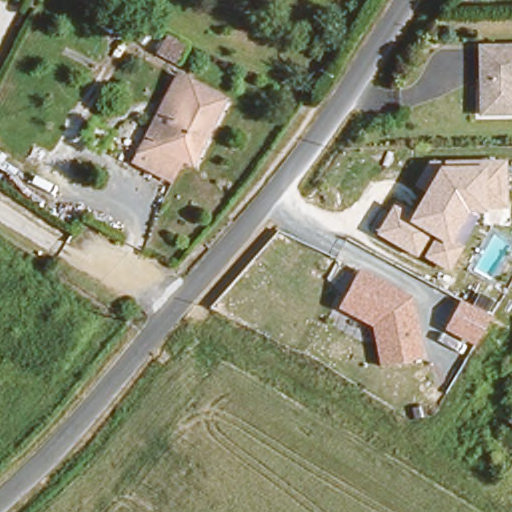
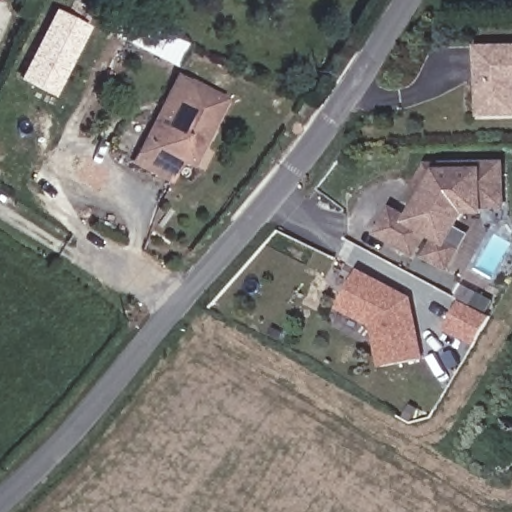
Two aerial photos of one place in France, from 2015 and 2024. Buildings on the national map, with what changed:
new [(21,79),(55,9),(87,26),(52,96),(21,79)]
unchanged [(190,43),(177,65),(153,52),(165,30),(190,43)]
unchanged [(475,122),(476,86),(480,81),(481,71),(476,71),(476,51),(512,51),(512,123),(475,122)]
unchanged [(227,98),(192,169),(182,164),(172,184),(131,163),(174,73),(227,98)]
unchanged [(411,215),(424,187),(416,184),(427,161),(506,158),(507,209),(486,210),(486,216),(465,216),(473,222),(446,274),(375,235),(391,205),(411,215)]
unchanged [(412,296),(422,360),(378,366),(372,326),(337,307),(357,267),(412,296)]
unchanged [(488,315),(473,345),(443,331),(460,300),(488,315)]

